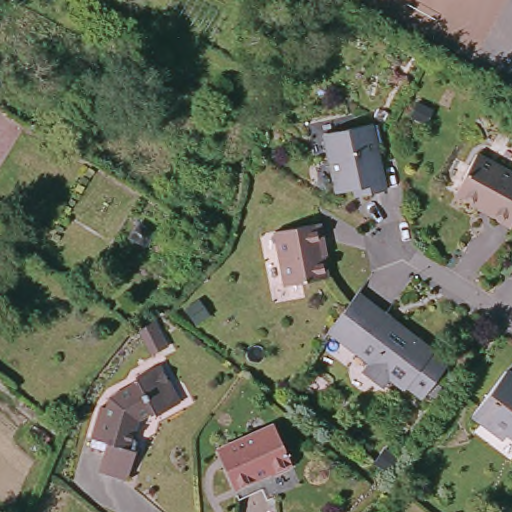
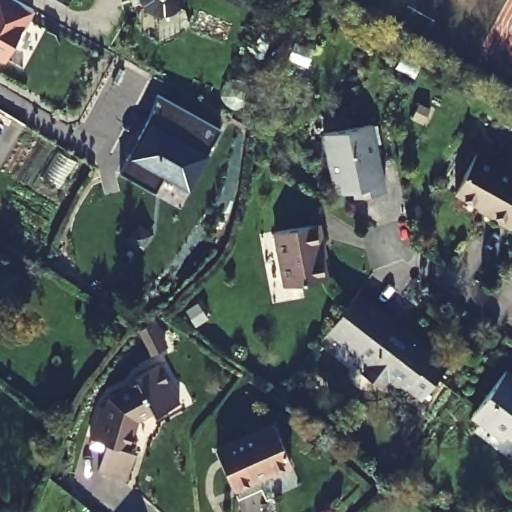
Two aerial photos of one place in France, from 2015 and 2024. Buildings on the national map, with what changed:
new [(10,0),(30,11),(5,61),(0,59),(0,0),(10,0)]
new [(177,10),(171,14),(165,15),(157,14),(151,12),(145,8),(142,3),(140,0),(184,0),(182,5),(177,10)]
new [(161,98),(221,131),(190,190),(130,158),(161,98)]
unchanged [(352,185),(333,189),(322,133),(368,123),(382,186),(362,190),(354,192),(352,185)]
unchanged [(512,222),(512,223),(497,215),(499,212),(454,189),(474,150),(512,170),(512,222)]
unchanged [(317,219),(321,240),(318,241),(325,274),(284,282),(272,229),(317,219)]
unchanged [(358,290),(385,312),(400,322),(433,347),(432,349),(447,361),(425,393),(409,381),(405,385),(390,374),(383,381),(367,368),(372,360),(330,328),(357,293),(358,290)]
unchanged [(154,320),(155,319),(168,342),(157,349),(143,330),(154,320)]
unchanged [(102,443),(85,437),(93,407),(100,409),(105,396),(130,381),(127,377),(152,363),(173,398),(149,412),(146,408),(133,416),(127,433),(133,443),(122,478),(95,470),(102,443)]
unchanged [(512,434),(508,431),(505,437),(473,413),(507,368),(512,372),(512,434)]
unchanged [(217,450),(274,424),(291,462),(289,467),(273,474),(268,472),(235,488),(217,450)]

